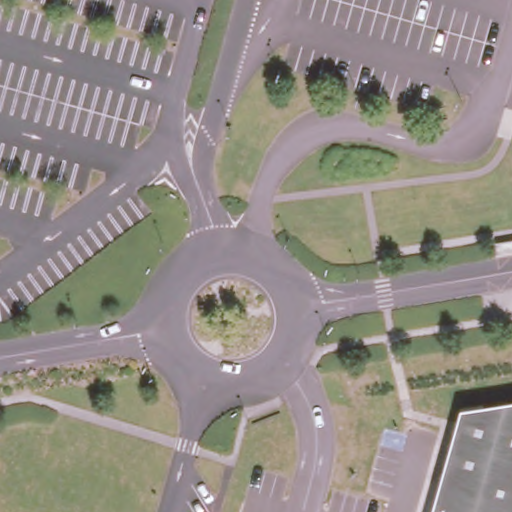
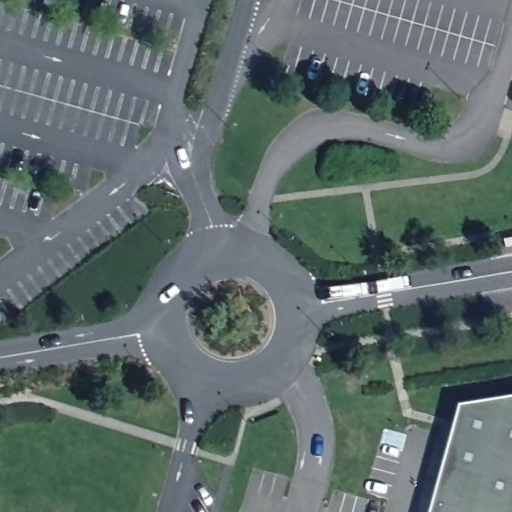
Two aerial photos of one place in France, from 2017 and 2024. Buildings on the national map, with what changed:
unchanged [(512,400),(512,512),(429,512),(460,408),(512,400)]

